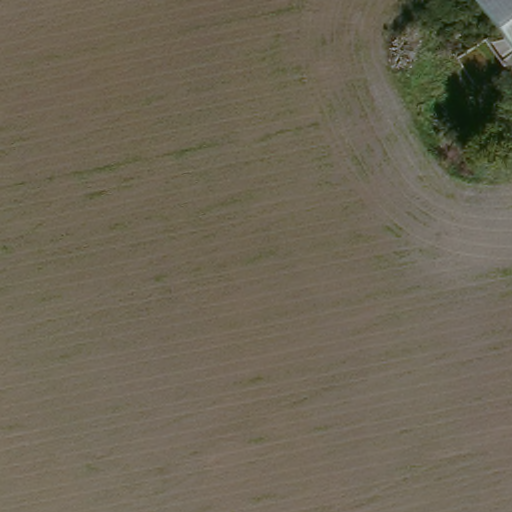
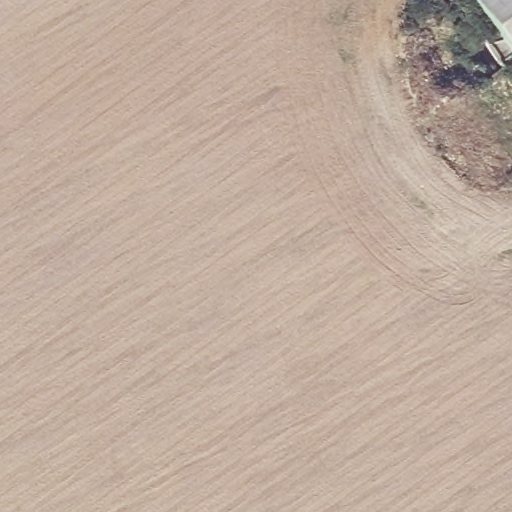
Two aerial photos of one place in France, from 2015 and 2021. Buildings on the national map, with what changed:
unchanged [(512,0),(512,40),(481,1),(483,0),(512,0)]

